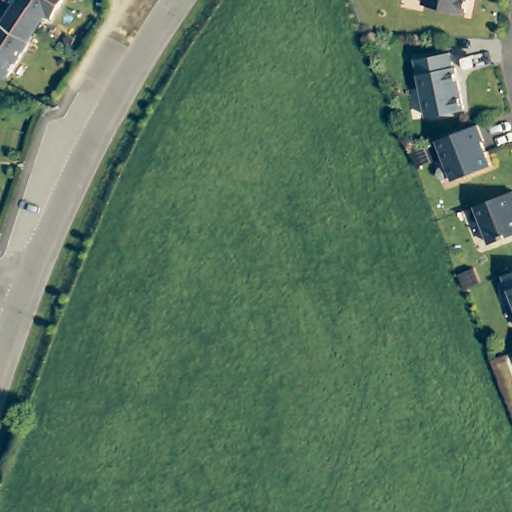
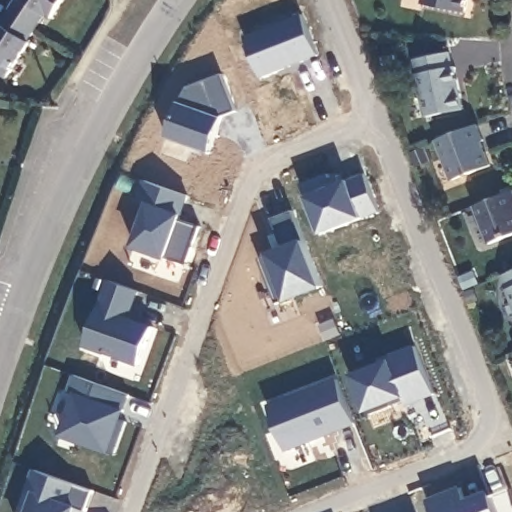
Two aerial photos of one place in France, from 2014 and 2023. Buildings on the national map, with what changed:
unchanged [(47,12),(30,40),(32,41),(12,72),(0,64),(0,26),(17,0),(67,0),(55,17),(47,12)]
unchanged [(433,0),(473,0),(472,7),(433,0)]
new [(260,72),(244,32),(300,10),(317,50),(260,72)]
unchanged [(455,65),(458,64),(466,106),(430,114),(418,56),(452,50),(455,65)]
unchanged [(491,142),(489,144),(498,167),(461,182),(445,142),(455,139),(485,126),(491,142)]
new [(377,206),(320,230),(300,180),(327,169),(332,181),(363,169),(377,206)]
new [(337,170),(340,178),(332,181),(329,173),(337,170)]
new [(178,214),(200,222),(186,260),(134,241),(149,200),(137,196),(145,175),(187,190),(178,214)]
unchanged [(512,185),(512,229),(490,237),(476,200),(511,185),(512,185)]
new [(320,282),(275,300),(257,254),(282,244),(270,214),(291,205),(320,282)]
unchanged [(512,269),(512,287),(506,271),(512,269)]
new [(127,314),(151,322),(139,360),(85,340),(109,275),(137,286),(127,314)]
new [(405,401),(402,393),(365,407),(350,372),(389,356),(387,352),(414,342),(432,390),(405,401)]
new [(284,447),(267,402),(335,375),(353,420),(284,447)]
new [(27,510),(19,507),(35,465),(92,486),(83,512),(27,512),(27,510)]
new [(425,497),(459,485),(470,512),(431,512),(425,497)]
new [(476,512),(470,512),(465,501),(489,491),(493,505),(476,512)]
new [(493,505),(496,512),(476,512),(493,505)]

